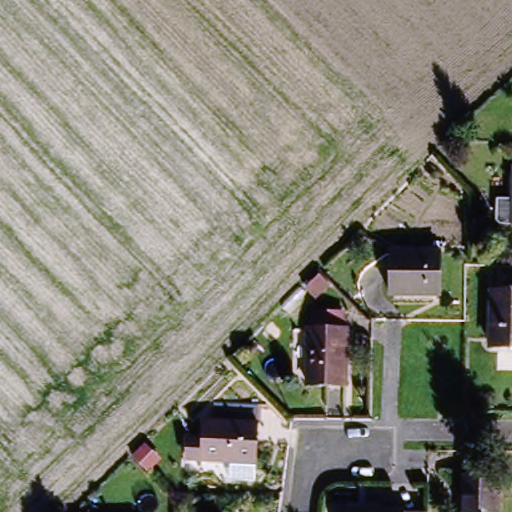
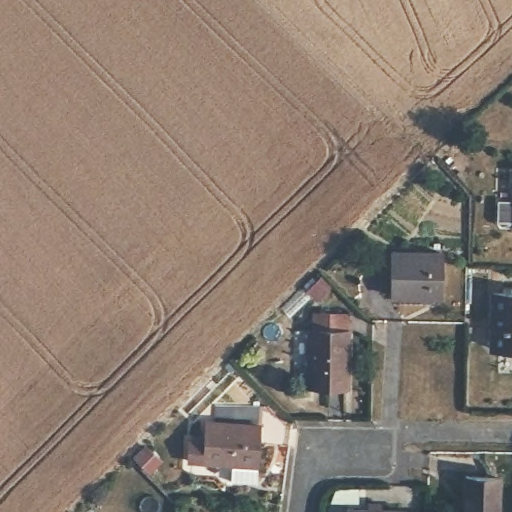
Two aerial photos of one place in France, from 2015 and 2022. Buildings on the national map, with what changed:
unchanged [(512,225),(511,225),(511,168),(512,168),(512,225)]
unchanged [(396,286),(399,246),(444,248),(442,289),(396,286)]
unchanged [(512,350),(497,349),(498,297),(512,297),(512,350)]
unchanged [(306,320),(344,320),(344,376),(307,376),(306,320)]
unchanged [(223,480),(223,460),(198,460),(181,460),(181,441),(198,442),(198,422),(218,423),(218,404),(249,405),(248,423),(248,461),(248,480),(223,480)]
unchanged [(468,470),(498,470),(498,512),(468,512),(468,470)]
unchanged [(341,510),(395,510),(395,512),(342,512),(341,510)]

